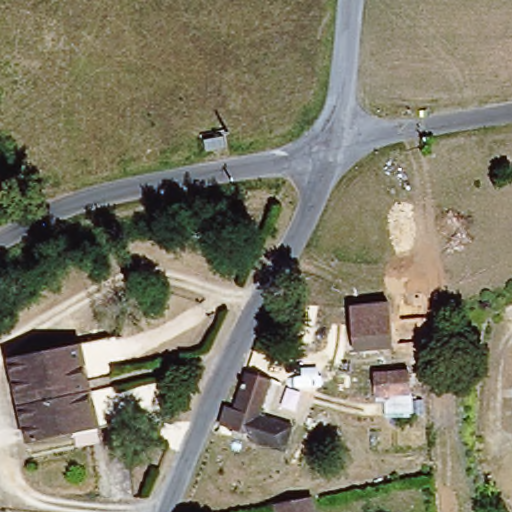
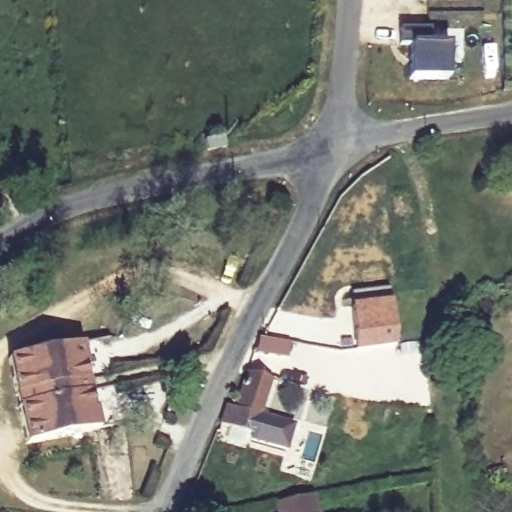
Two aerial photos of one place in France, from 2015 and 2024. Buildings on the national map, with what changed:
new [(430,30),(430,45),(448,45),(448,80),(409,79),(409,44),(400,44),(400,30),(430,30)]
unchanged [(394,348),(391,320),(396,320),(395,292),(422,291),(424,321),(420,321),(422,346),(394,348)]
unchanged [(390,305),(391,320),(394,348),(355,352),(351,308),(390,305)]
unchanged [(35,441),(17,355),(90,342),(107,426),(35,441)]
unchanged [(253,441),(255,436),(222,425),(227,406),(239,409),(250,374),(275,381),(265,417),(296,426),(289,451),(253,441)]
unchanged [(413,377),(415,400),(378,402),(377,379),(413,377)]
unchanged [(278,506),(320,498),(323,512),(279,512),(278,506)]

